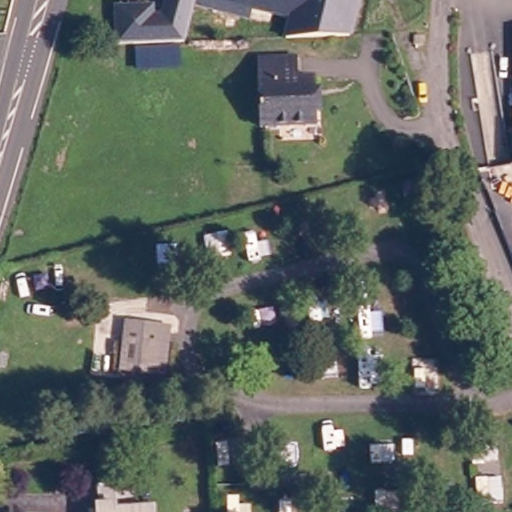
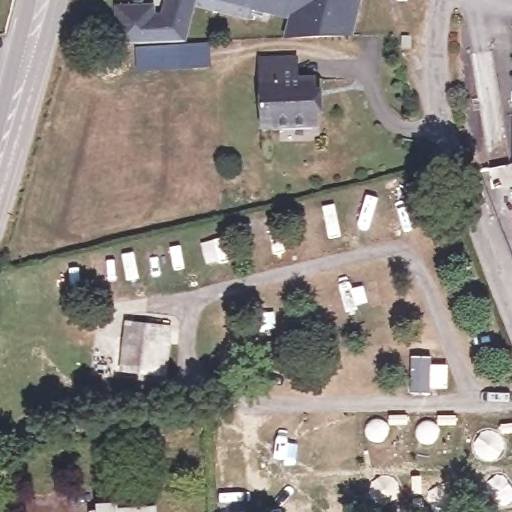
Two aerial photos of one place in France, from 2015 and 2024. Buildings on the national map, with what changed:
unchanged [(351,39),(334,40),(285,40),(289,20),(250,9),(248,19),(191,4),(180,44),(115,45),(127,0),(151,0),(159,2),(158,12),(165,14),(169,0),(362,0),(351,39)]
unchanged [(265,59),(305,56),(305,76),(321,77),(323,124),(267,127),(265,59)]
unchanged [(122,361),(131,312),(158,317),(177,321),(174,333),(168,370),(122,361)]
unchanged [(109,485),(144,484),(146,511),(166,511),(166,512),(107,512),(107,506),(109,506),(109,485)]

